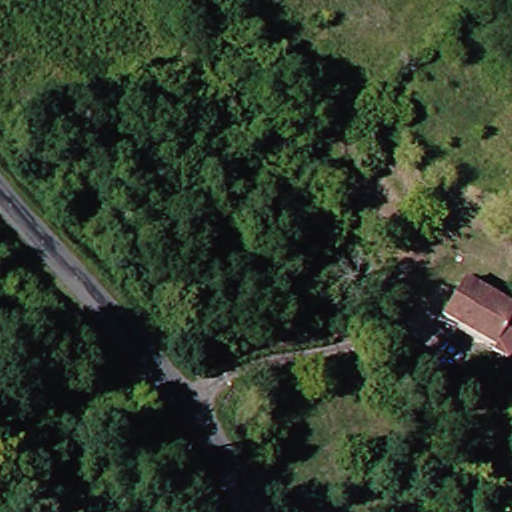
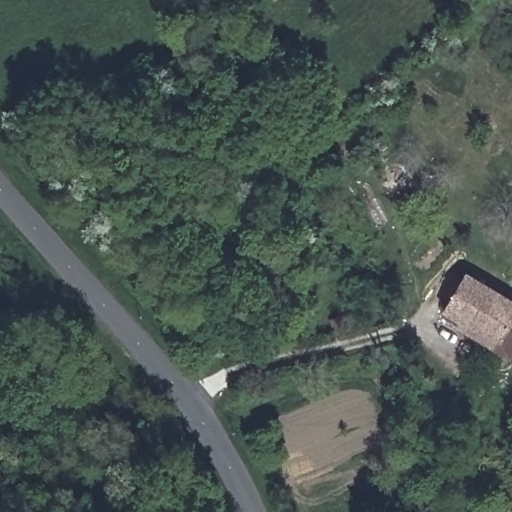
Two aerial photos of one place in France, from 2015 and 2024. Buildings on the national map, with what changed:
unchanged [(475,270),(512,298),(512,357),(508,362),(495,353),(446,315),(452,305),(475,270)]
unchanged [(353,339),(348,316),(359,313),(365,337),(353,339)]

